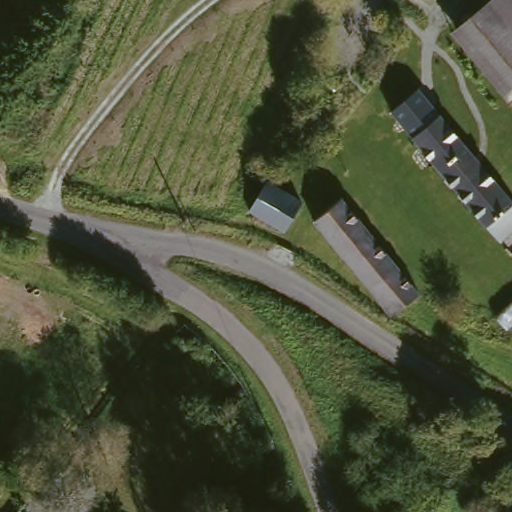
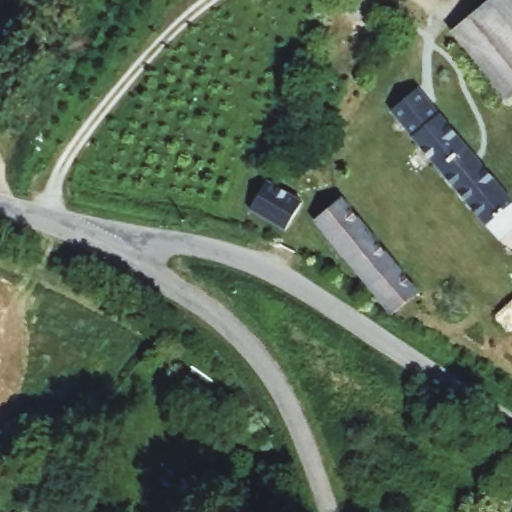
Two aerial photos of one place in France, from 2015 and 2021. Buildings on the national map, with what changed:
unchanged [(502,26),(512,38),(512,101),(508,104),(466,54),(444,24),(474,0),(512,0),(512,18),(502,26)]
unchanged [(512,18),(512,38),(502,26),(512,18)]
unchanged [(487,177),(512,206),(512,230),(497,242),(391,117),(417,95),(420,98),(471,160),(487,177)]
unchanged [(301,205),(285,232),(250,212),(267,183),(301,205)]
unchanged [(420,294),(391,316),(314,222),(340,199),(420,294)]

